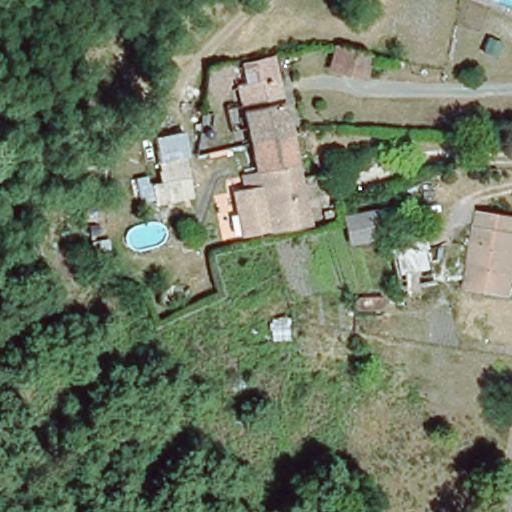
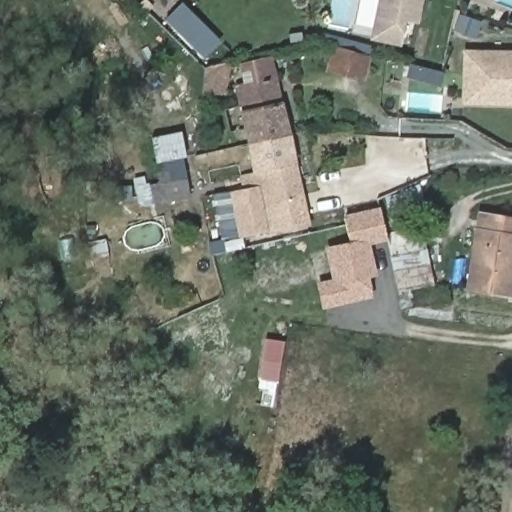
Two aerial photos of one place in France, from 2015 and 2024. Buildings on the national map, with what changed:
new [(400,45),(367,40),(370,27),(353,24),(358,0),(422,0),(417,24),(405,22),(400,45)]
new [(181,3),(220,41),(203,59),(164,20),(181,3)]
new [(463,49),(512,50),(512,107),(461,105),(463,49)]
unchanged [(353,83),(321,79),(325,55),(330,56),(340,57),(342,57),(352,59),(356,59),(353,83)]
new [(405,79),(409,64),(443,72),(440,87),(405,79)]
unchanged [(249,87),(246,72),(274,66),(277,80),(279,80),(292,134),(249,144),(237,90),(249,87)]
unchanged [(193,103),(195,97),(195,93),(195,92),(196,90),(196,87),(197,85),(216,79),(211,108),(192,112),(193,103)]
unchanged [(292,134),(299,176),(268,184),(263,171),(255,173),(249,144),(292,134)]
unchanged [(177,201),(181,214),(146,221),(142,203),(134,205),(131,181),(152,174),(147,154),(184,146),(190,199),(177,201)]
unchanged [(263,171),(268,184),(299,176),(310,224),(269,234),(269,230),(258,185),(255,173),(263,171)]
new [(258,185),(269,230),(240,237),(229,192),(258,185)]
demolished [(341,209),(379,202),(384,229),(346,237),(343,221),(341,209)]
new [(349,241),(342,215),(379,206),(388,241),(370,245),(377,276),(368,278),(373,296),(321,308),(315,282),(331,278),(325,247),(349,241)]
unchanged [(512,217),(512,281),(509,294),(465,285),(477,212),(512,217)]
unchanged [(425,248),(432,278),(393,287),(387,256),(425,248)]

